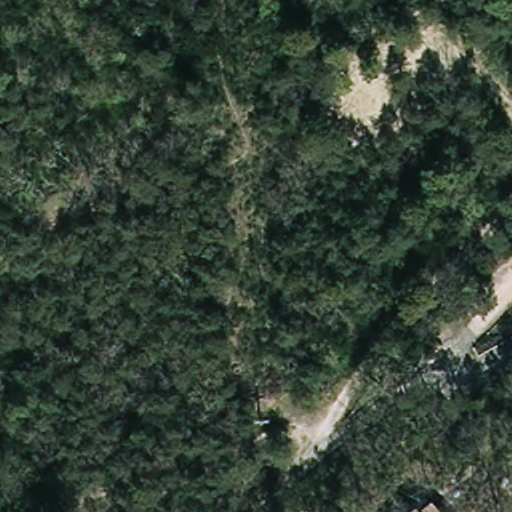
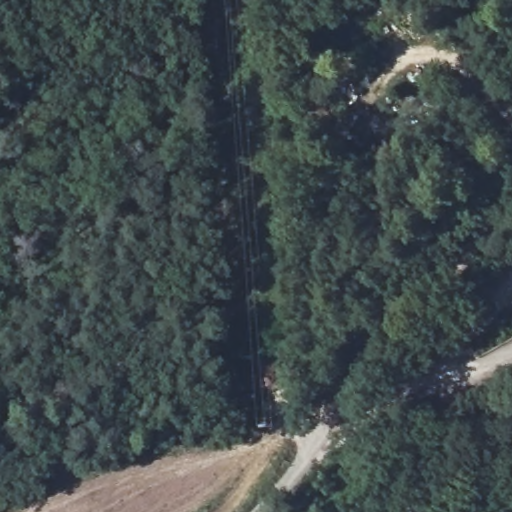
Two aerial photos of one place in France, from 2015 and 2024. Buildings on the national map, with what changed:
unchanged [(426,511),(439,502),(448,512),(418,512),(423,508),(426,511)]

